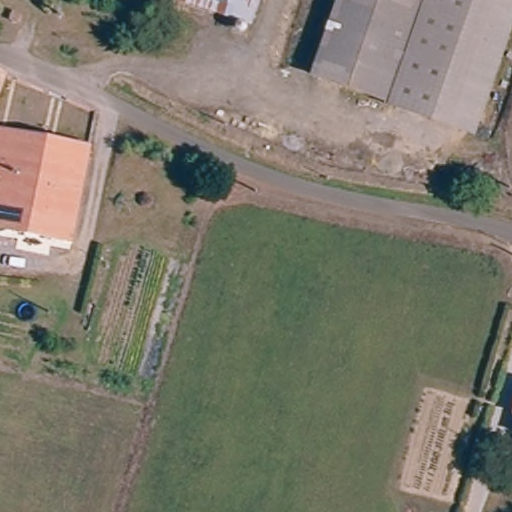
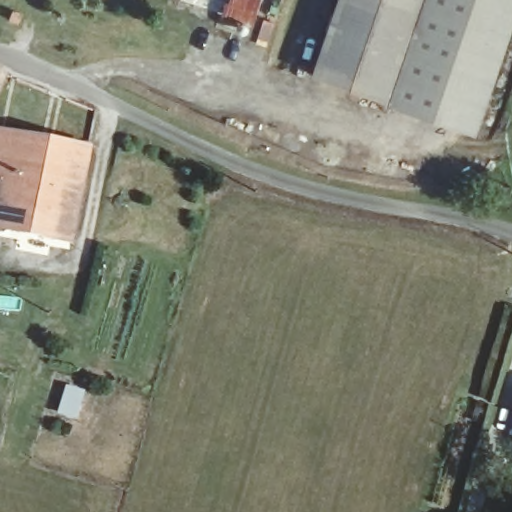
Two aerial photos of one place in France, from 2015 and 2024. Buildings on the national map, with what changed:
unchanged [(182,0),(259,0),(252,24),(182,1),(182,0)]
unchanged [(314,71),(339,0),(421,0),(388,96),(314,71)]
unchanged [(421,0),(512,0),(512,17),(473,130),(387,100),(388,96),(421,0)]
unchanged [(0,72),(9,76),(0,96),(0,72)]
unchanged [(38,235),(0,227),(0,134),(96,150),(76,243),(38,235)]

